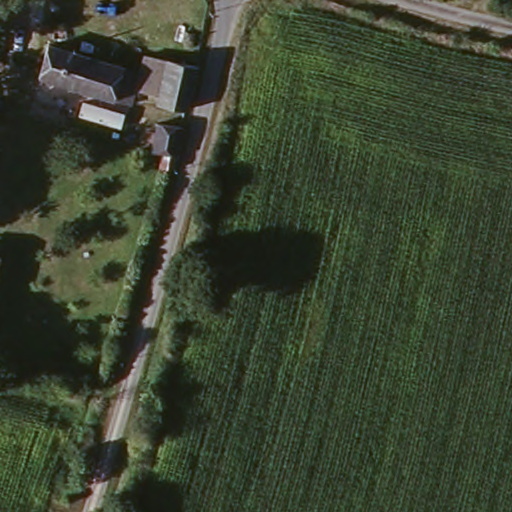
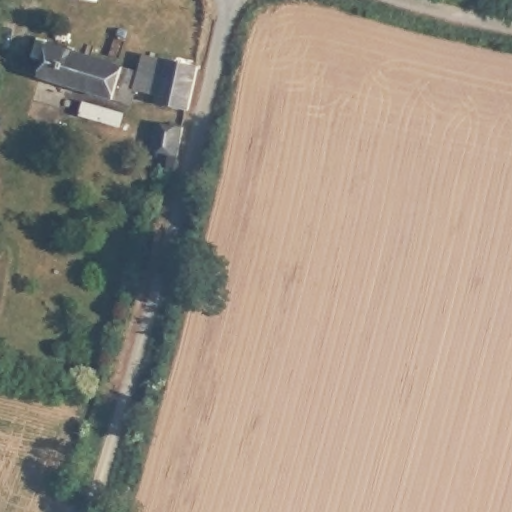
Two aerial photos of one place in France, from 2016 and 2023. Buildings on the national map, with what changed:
unchanged [(179,106),(150,99),(151,90),(136,88),(131,109),(125,108),(129,93),(115,89),(117,73),(135,77),(139,51),(189,61),(179,106)]
unchanged [(115,89),(129,93),(125,108),(37,88),(44,53),(117,73),(115,89)]
unchanged [(159,164),(161,149),(152,146),(157,119),(185,124),(173,168),(159,164)]

